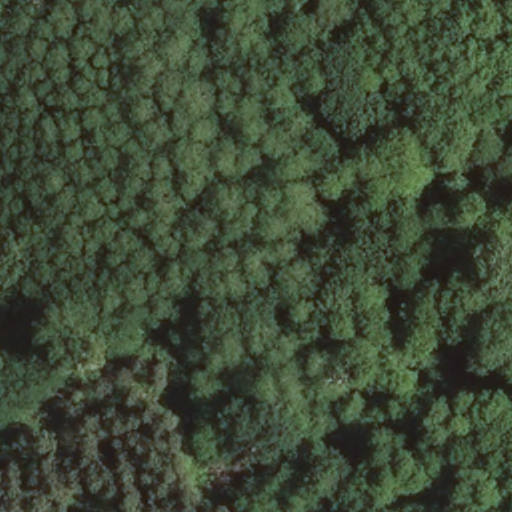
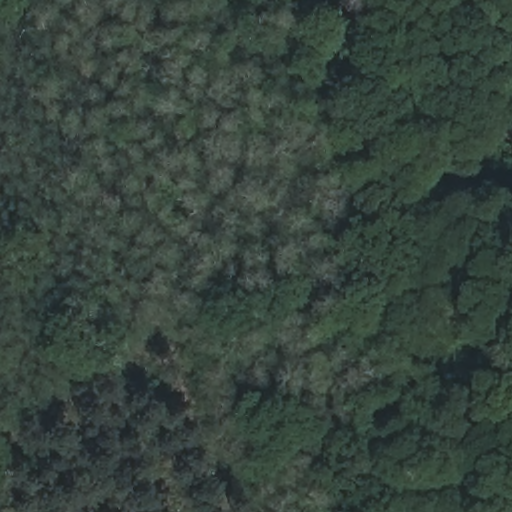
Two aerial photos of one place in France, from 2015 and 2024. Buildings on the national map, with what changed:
[]

